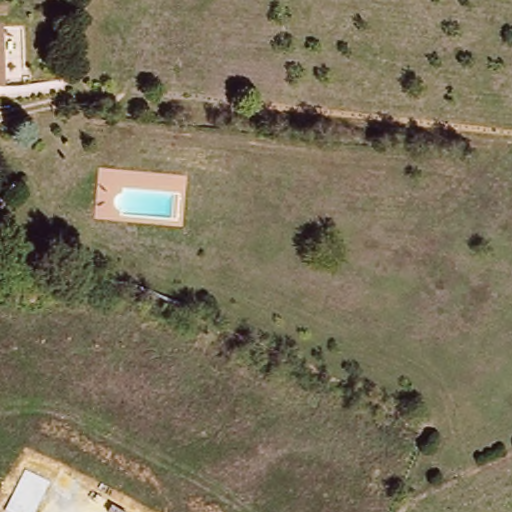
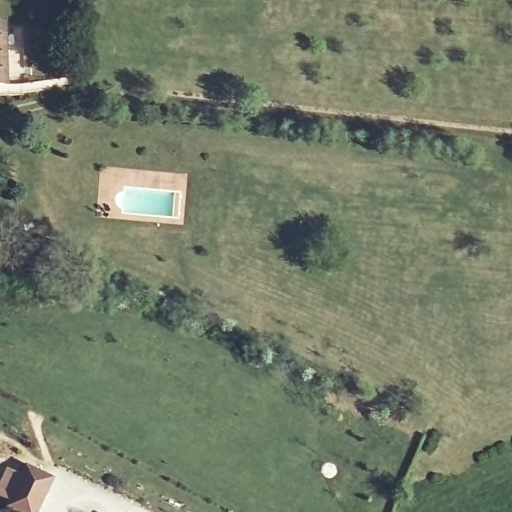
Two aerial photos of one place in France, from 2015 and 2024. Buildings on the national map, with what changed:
unchanged [(7,17),(8,88),(0,88),(0,17),(7,17)]
new [(39,512),(5,512),(0,510),(5,501),(0,500),(0,481),(6,469),(22,475),(26,465),(56,478),(39,512)]

